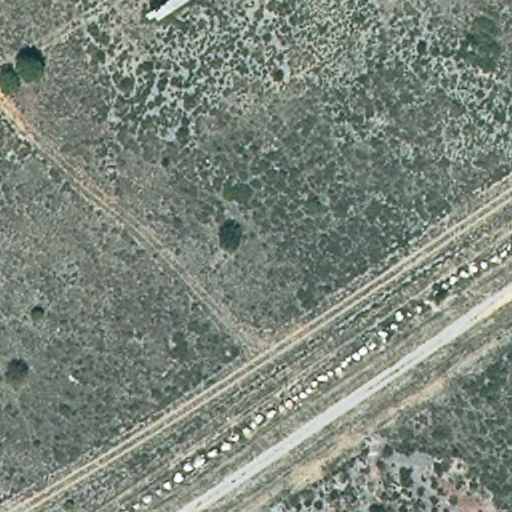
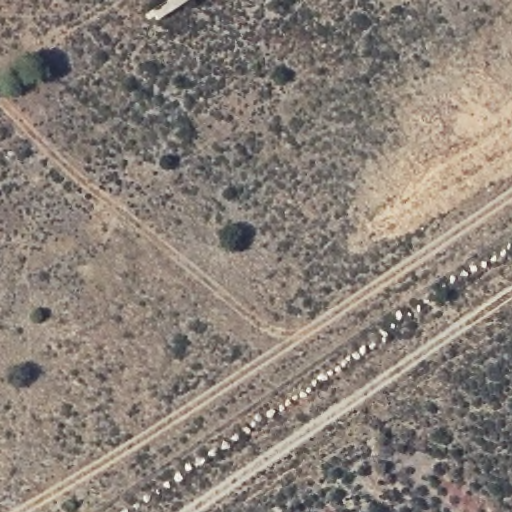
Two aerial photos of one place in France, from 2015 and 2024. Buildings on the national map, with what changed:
unchanged [(184,0),(157,17),(148,6),(158,0),(184,0)]

